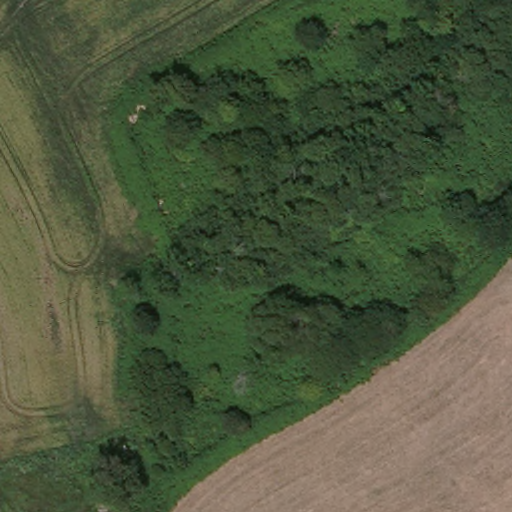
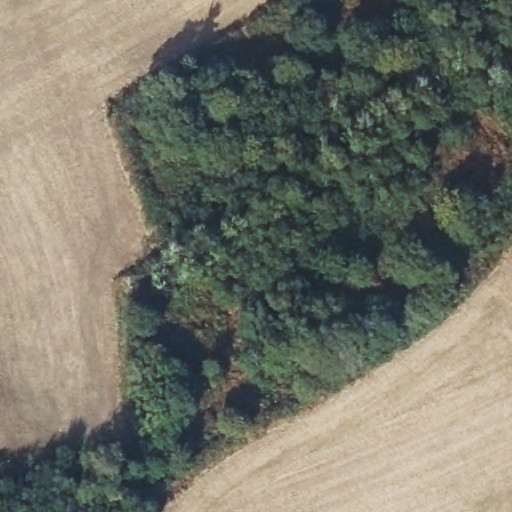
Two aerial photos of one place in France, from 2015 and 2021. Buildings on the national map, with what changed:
[]

